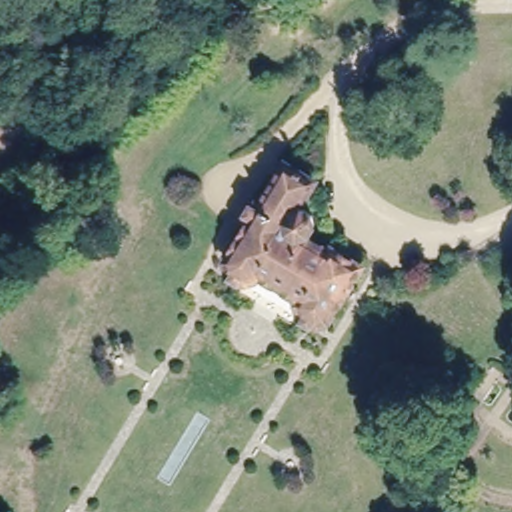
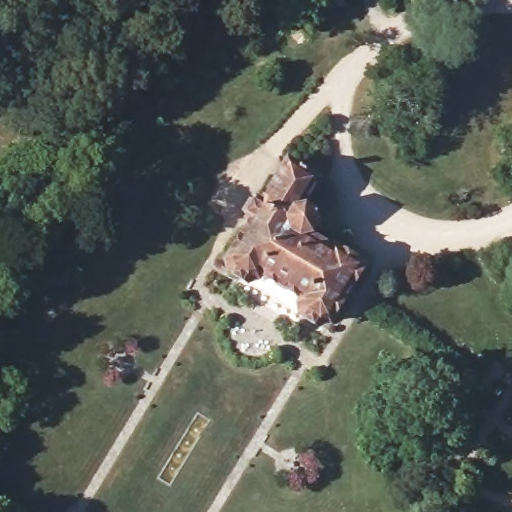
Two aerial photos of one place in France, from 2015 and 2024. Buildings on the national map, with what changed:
unchanged [(296,303),(298,299),(255,272),(252,277),(242,281),(225,270),(223,260),(247,221),(244,218),(254,202),(257,204),(283,162),(312,180),(294,209),(300,208),(308,213),(310,224),(305,234),(299,235),(326,251),(328,248),(358,266),(324,322),(314,324),(297,313),(296,303)]

